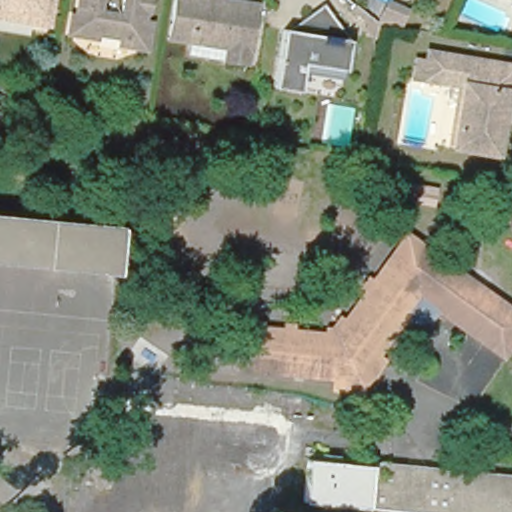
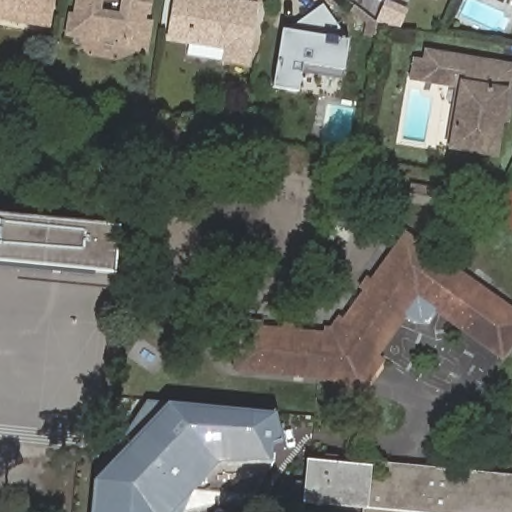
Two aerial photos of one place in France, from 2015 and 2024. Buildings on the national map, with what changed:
unchanged [(15,9),(15,5),(0,2),(0,0),(58,0),(55,16),(15,9)]
unchanged [(148,11),(147,16),(152,16),(148,39),(135,48),(103,42),(103,47),(75,42),(78,24),(83,24),(88,0),(155,0),(153,8),(148,11)]
unchanged [(187,52),(181,51),(183,39),(166,36),(172,0),(202,0),(190,40),(187,52)]
unchanged [(218,58),(187,52),(190,40),(202,0),(253,0),(248,30),(247,40),(243,61),(218,58)]
unchanged [(273,79),(283,26),(297,26),(308,20),(303,13),(320,1),(347,36),(343,64),(302,58),(296,84),(273,79)]
unchanged [(302,58),(343,64),(339,93),(296,84),(302,58)]
unchanged [(453,94),(409,86),(413,69),(424,71),(425,62),(491,73),(512,76),(502,131),(496,130),(489,164),(448,156),(442,155),(453,94)]
unchanged [(115,226),(111,275),(0,263),(0,214),(115,226)]
unchanged [(342,384),(342,383),(340,383),(241,373),(239,373),(244,330),(248,330),(248,323),(268,325),(267,332),(286,334),(286,327),(298,328),(297,336),(324,339),(325,332),(335,333),(342,321),(343,322),(348,325),(368,296),(363,292),(371,281),(375,284),(406,238),(512,313),(512,350),(502,363),(437,317),(429,328),(415,328),(406,321),(379,361),(382,363),(385,365),(382,368),(380,372),(366,393),(347,391),(344,390),(341,390),(341,386),(342,384)]
new [(167,402),(276,412),(284,442),(274,445),(274,460),(254,496),(186,512),(92,512),(95,480),(122,451),(122,438),(150,401),(167,402)]
demolished [(192,441),(223,444),(221,472),(189,469),(192,441)]
unchanged [(420,471),(512,480),(512,512),(360,512),(360,510),(298,504),(302,463),(353,467),(369,469),(369,466),(420,471)]
demolished [(142,473),(186,477),(183,511),(138,508),(142,473)]

